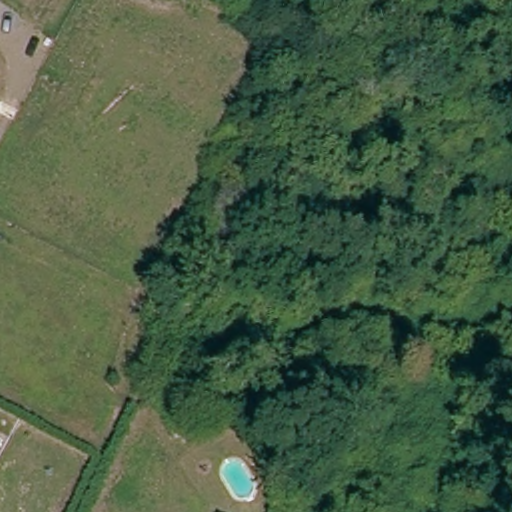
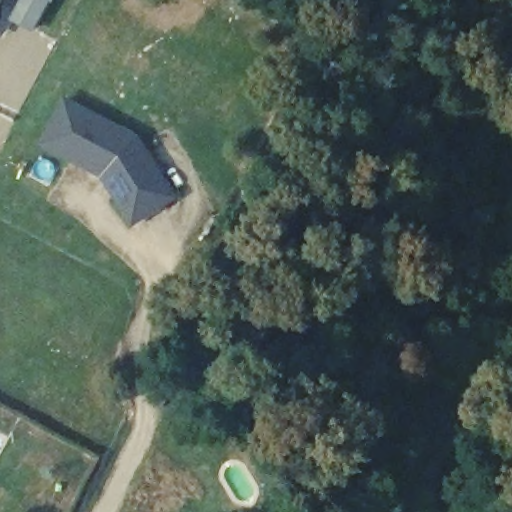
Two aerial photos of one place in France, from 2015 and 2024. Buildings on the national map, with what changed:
new [(9,20),(19,0),(51,0),(34,33),(9,20)]
new [(132,229),(100,179),(36,147),(65,96),(140,136),(179,200),(132,229)]

